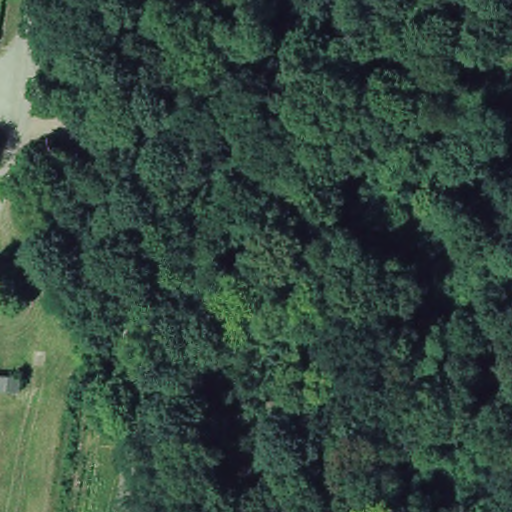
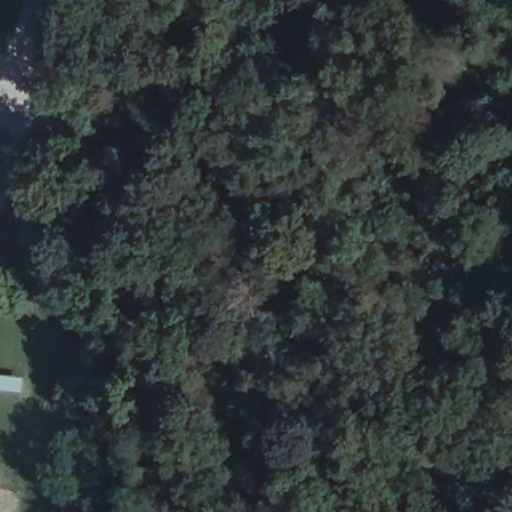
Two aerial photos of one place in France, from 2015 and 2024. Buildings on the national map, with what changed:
unchanged [(0,391),(0,377),(21,379),(19,393),(0,391)]

